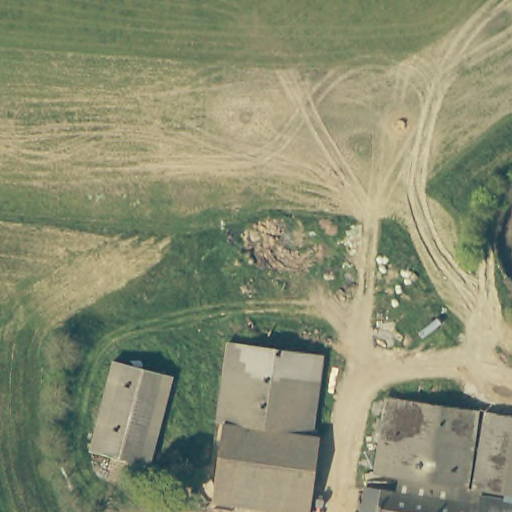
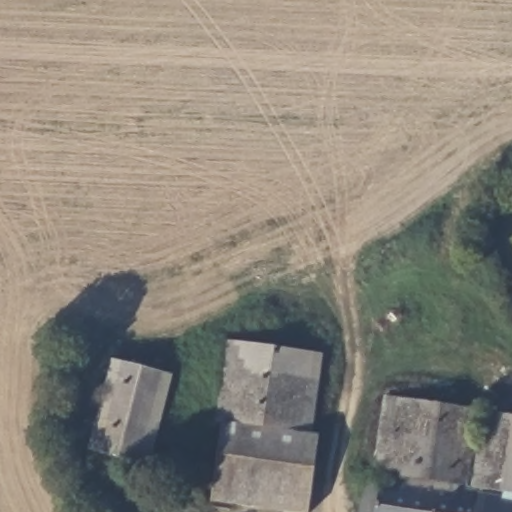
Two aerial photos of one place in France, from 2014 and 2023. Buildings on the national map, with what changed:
unchanged [(219,421),(230,342),(244,344),(324,356),(312,435),(225,422),(219,421)]
unchanged [(95,458),(120,367),(167,380),(142,471),(95,458)]
unchanged [(479,413),(468,488),(377,475),(388,399),(479,413)]
unchanged [(506,495),(474,490),(486,414),(512,418),(512,455),(506,495)]
unchanged [(321,436),(310,512),(283,512),(213,501),(225,422),(312,435),(321,436)]
unchanged [(506,495),(512,455),(512,495),(506,495)]
unchanged [(366,487),(481,505),(482,499),(512,504),(512,512),(362,512),(366,487)]

